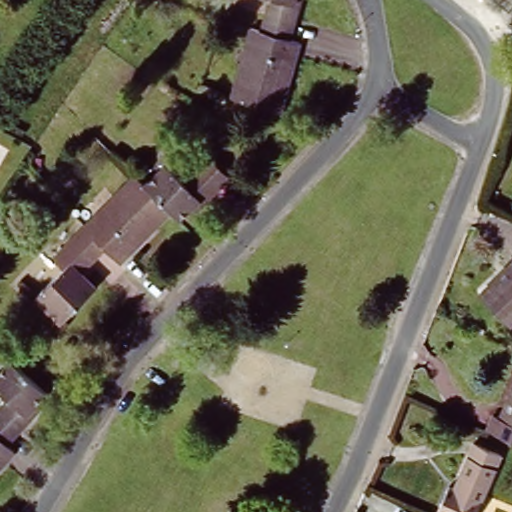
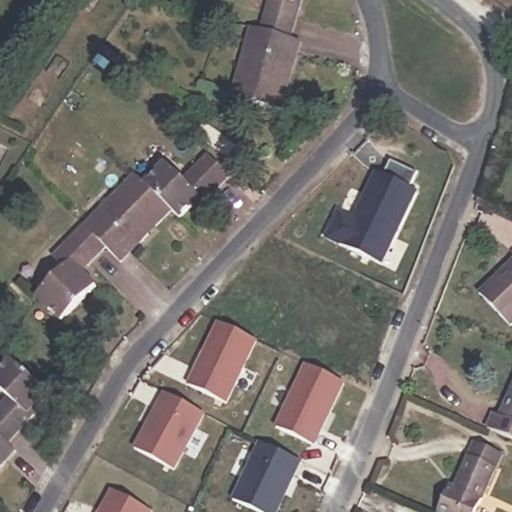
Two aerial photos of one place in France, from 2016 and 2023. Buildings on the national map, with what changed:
unchanged [(256,31),(265,0),(293,0),(292,1),(297,5),(287,40),(256,31)]
unchanged [(286,81),(281,80),(277,94),(282,96),(276,115),(226,99),(235,73),(240,75),(247,54),(240,50),(247,28),(256,31),(287,40),(298,44),(286,81)]
unchanged [(163,165),(181,183),(206,159),(227,180),(200,206),(195,201),(176,220),(168,211),(142,185),(163,165)]
new [(343,213),(359,220),(381,172),(388,175),(395,160),(422,173),(415,188),(422,191),(386,267),(330,240),(343,213)]
unchanged [(78,225),(93,211),(97,216),(116,199),(112,195),(132,175),(142,185),(168,211),(152,226),(148,222),(140,231),(143,235),(115,263),(101,249),(78,225)]
unchanged [(101,249),(71,270),(87,293),(52,319),(30,298),(57,270),(45,257),(78,225),(101,249)]
unchanged [(509,326),(479,290),(512,263),(512,323),(509,326)]
new [(250,355),(218,415),(181,395),(213,334),(250,355)]
unchanged [(0,399),(3,395),(0,393),(0,365),(6,358),(42,392),(25,410),(29,415),(3,442),(0,439),(0,399)]
new [(335,401),(302,462),(265,441),(298,381),(335,401)]
new [(167,392),(208,415),(177,472),(136,450),(167,392)]
unchanged [(488,427),(497,412),(502,415),(512,395),(512,439),(488,427)]
unchanged [(0,439),(3,442),(13,451),(0,466),(0,439)]
new [(305,463),(282,512),(259,512),(236,501),(263,443),(305,463)]
unchanged [(432,512),(445,488),(450,492),(472,449),(499,463),(475,512),(432,512)]
new [(157,510),(156,512),(103,512),(115,488),(157,510)]

